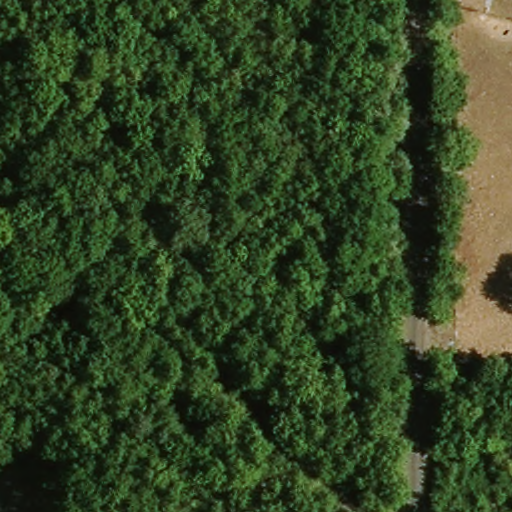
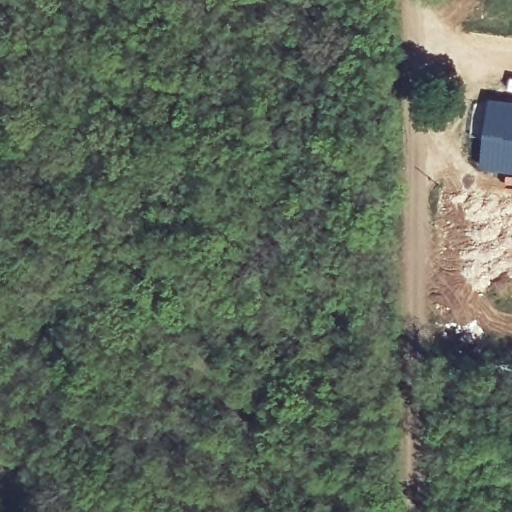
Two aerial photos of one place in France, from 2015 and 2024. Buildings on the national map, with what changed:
new [(493,104),(512,106),(512,172),(487,170),(493,104)]

